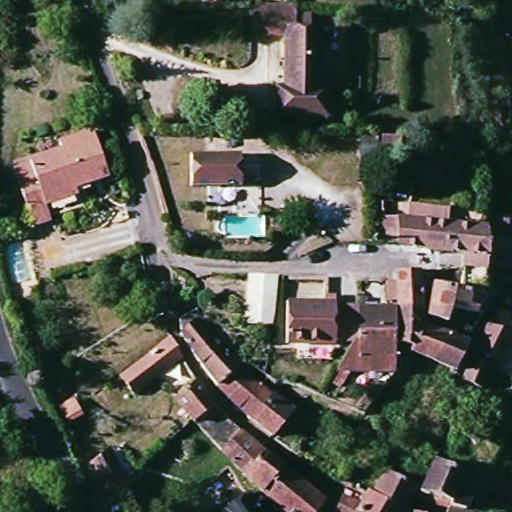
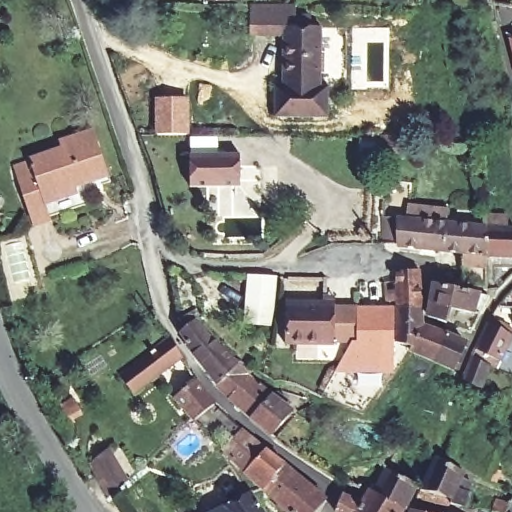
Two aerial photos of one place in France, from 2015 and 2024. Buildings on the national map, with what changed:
unchanged [(298,7),(300,25),(327,26),(326,86),(333,87),(333,119),(280,117),(280,95),(285,95),(287,37),(264,36),(255,36),(255,6),(260,6),(298,7)]
new [(190,136),(155,136),(155,99),(190,99),(190,136)]
unchanged [(115,177),(82,189),(84,195),(50,206),(55,220),(36,227),(17,170),(36,164),(35,161),(68,149),(67,145),(101,134),(115,177)]
unchanged [(192,188),(192,156),(241,156),(242,188),(192,188)]
unchanged [(496,207),(497,228),(512,228),(512,257),(494,257),(492,288),(466,286),(469,254),(442,252),(385,246),(387,219),(397,220),(398,205),(438,208),(437,222),(482,226),(484,207),(496,207)]
unchanged [(402,272),(425,271),(438,270),(441,283),(426,283),(427,306),(402,307),(401,297),(391,297),(392,287),(384,286),(385,279),(402,280),(402,272)]
unchanged [(277,325),(248,326),(258,277),(286,279),(277,325)]
unchanged [(441,318),(437,316),(435,311),(436,306),(441,283),(485,296),(477,316),(457,310),(452,323),(450,322),(441,318)]
unchanged [(365,296),(371,296),(371,302),(365,302),(365,296)]
unchanged [(295,346),(295,303),(343,303),(343,307),(365,307),(365,341),(361,341),(344,342),(344,344),(295,346)]
unchanged [(457,375),(439,364),(418,351),(416,348),(404,346),(402,307),(427,306),(428,325),(446,332),(453,336),(471,342),(457,375)]
unchanged [(397,307),(397,357),(397,368),(343,367),(361,341),(365,341),(365,307),(397,307)]
unchanged [(221,392),(216,387),(191,348),(185,337),(180,325),(198,315),(204,323),(198,327),(248,363),(221,392)]
unchanged [(497,320),(512,327),(512,358),(511,359),(494,350),(491,357),(502,364),(493,385),(472,376),(482,352),(497,320)]
unchanged [(175,343),(186,363),(159,381),(136,398),(123,378),(175,343)]
unchanged [(271,441),(255,427),(246,418),(221,392),(248,363),(264,374),(260,378),(273,392),(282,402),(297,417),(271,441)]
unchanged [(262,487),(245,470),(227,448),(199,418),(178,395),(201,377),(218,400),(245,427),(266,444),(285,460),(329,497),(316,512),(297,512),(262,487)]
unchanged [(65,418),(59,404),(74,397),(80,412),(65,418)]
unchanged [(111,495),(90,460),(112,449),(129,478),(111,495)]
unchanged [(455,505),(437,499),(422,494),(426,486),(442,457),(469,472),(467,477),(477,482),(471,508),(466,507),(465,512),(453,512),(455,505)]
unchanged [(241,476),(227,483),(220,470),(233,463),(241,476)]
unchanged [(393,465),(421,478),(419,483),(408,506),(405,512),(344,512),(350,499),(367,506),(374,496),(380,497),(393,465)]
unchanged [(202,491),(197,481),(213,473),(217,482),(202,491)]
unchanged [(253,495),(265,512),(211,512),(253,495)]
unchanged [(512,512),(495,512),(498,497),(512,501),(512,512)]
unchanged [(195,500),(200,512),(180,512),(178,507),(195,500)]
unchanged [(417,509),(428,512),(416,512),(417,509)]

